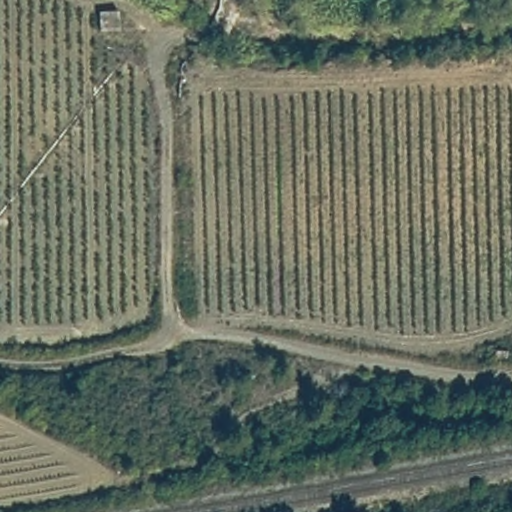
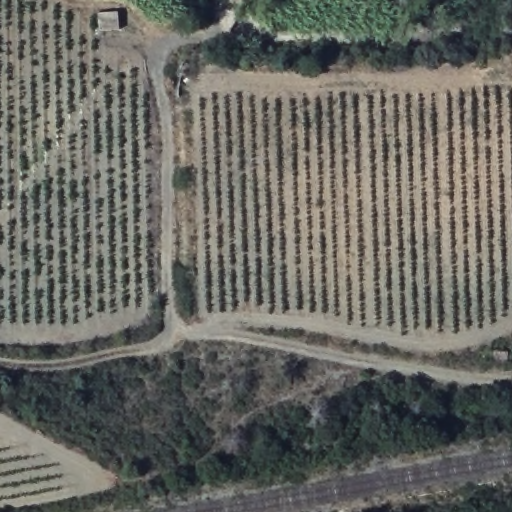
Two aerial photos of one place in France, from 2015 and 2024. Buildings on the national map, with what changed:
unchanged [(123,6),(123,25),(101,26),(99,8),(123,6)]

